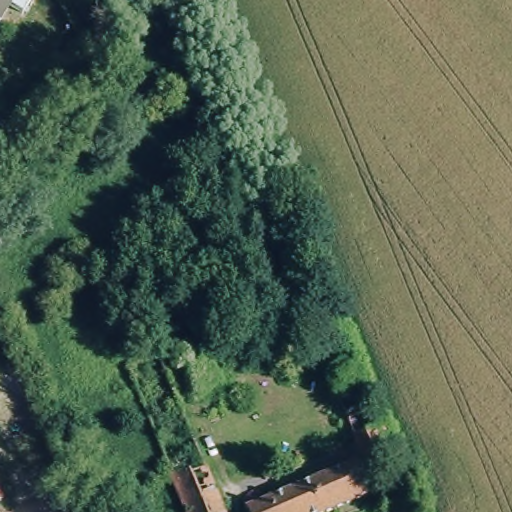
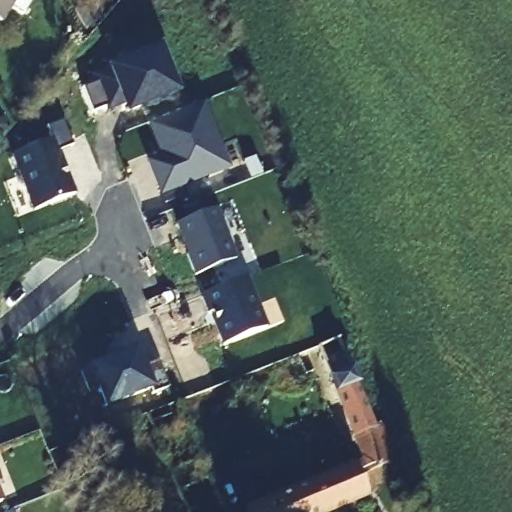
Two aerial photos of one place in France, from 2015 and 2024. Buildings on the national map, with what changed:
unchanged [(19,12),(6,5),(0,14),(0,0),(26,0),(19,12)]
new [(122,109),(107,112),(106,106),(92,111),(82,89),(99,84),(94,75),(107,70),(106,68),(160,46),(179,94),(125,115),(122,109)]
new [(146,162),(159,155),(147,123),(204,102),(230,169),(160,196),(146,162)]
new [(53,137),(47,126),(62,121),(72,145),(58,150),(75,194),(32,210),(11,154),(53,137)]
new [(217,208),(236,259),(194,275),(176,223),(217,208)]
new [(267,327),(220,345),(200,296),(247,278),(267,327)]
demolished [(201,339),(202,338),(219,380),(197,390),(180,347),(201,339)]
new [(96,391),(90,393),(81,368),(87,367),(137,348),(145,368),(157,362),(167,387),(152,392),(152,390),(104,409),(96,391)]
unchanged [(351,371),(356,385),(335,393),(330,380),(351,371)]
unchanged [(381,476),(378,470),(364,475),(359,463),(364,461),(345,415),(366,407),(375,428),(385,424),(390,435),(399,460),(395,462),(397,469),(381,476)]
unchanged [(220,512),(183,512),(156,446),(187,432),(220,512)]
unchanged [(355,465),(360,477),(368,497),(332,512),(246,512),(246,510),(355,465)]
unchanged [(0,502),(0,496),(2,501),(0,502)]

